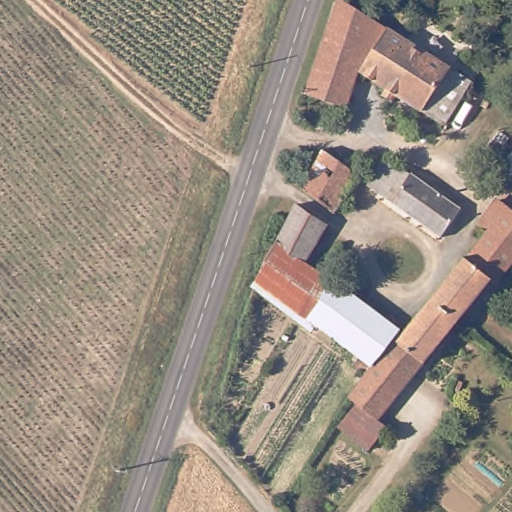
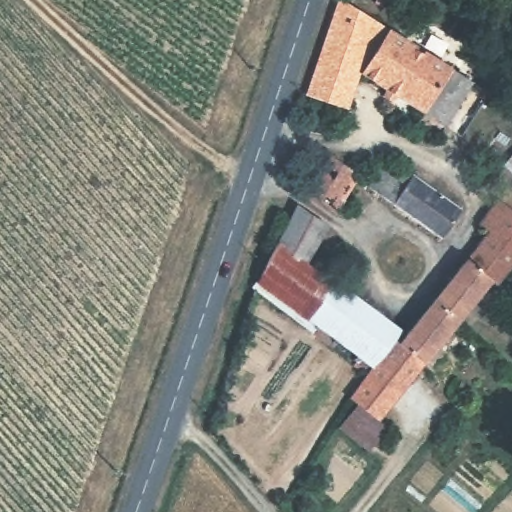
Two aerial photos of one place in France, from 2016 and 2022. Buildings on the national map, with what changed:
unchanged [(362,70),(350,104),(307,90),(338,0),(348,0),(473,80),(445,123),(416,105),(392,89),(362,70)]
unchanged [(443,230),(370,177),(387,150),(412,167),(415,164),(465,201),(443,230)]
unchanged [(336,209),(303,189),(325,151),(357,171),(336,209)]
unchanged [(493,282),(488,278),(457,318),(434,301),(487,231),(477,224),(495,199),(512,212),(512,258),(493,282)]
unchanged [(316,320),(275,287),(269,295),(257,285),(262,270),(279,236),(285,239),(303,203),(336,223),(315,261),(340,282),(316,320)]
unchanged [(382,417),(358,402),(351,397),(366,375),(350,362),(358,353),(316,320),(340,282),(401,331),(386,350),(416,372),(383,415),(382,417)]
unchanged [(407,336),(434,301),(457,318),(416,372),(386,350),(401,331),(407,336)]
unchanged [(382,417),(393,426),(372,448),(342,420),(358,402),(382,417)]

